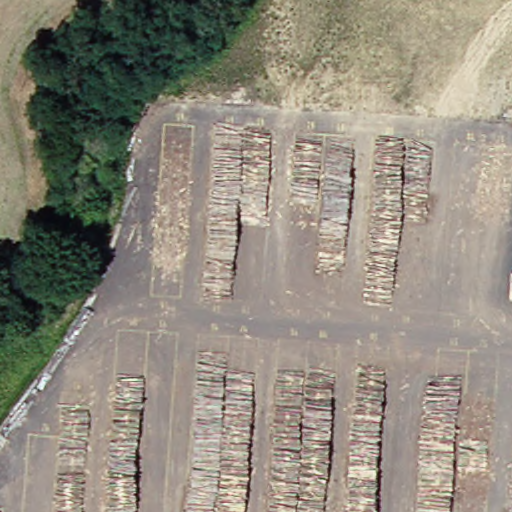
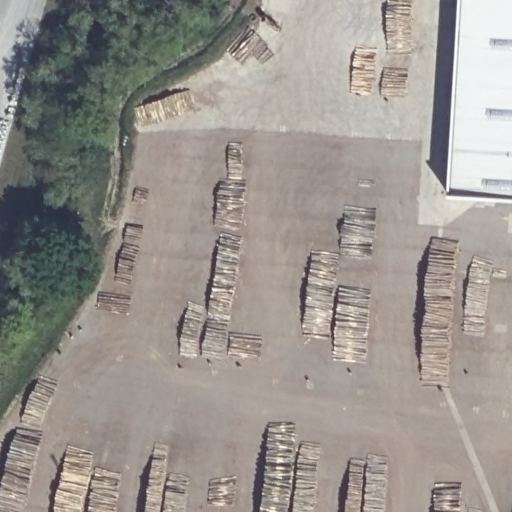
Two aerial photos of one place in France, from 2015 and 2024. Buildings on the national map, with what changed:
new [(461,0),(512,0),(512,198),(449,194),(461,0)]

